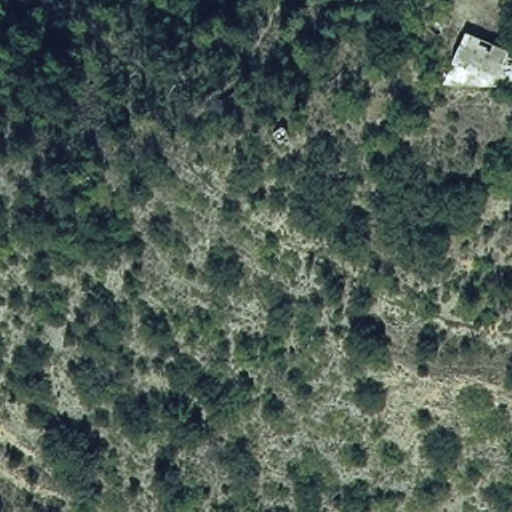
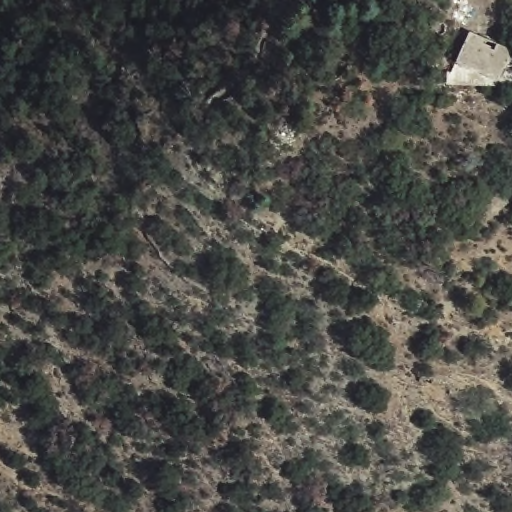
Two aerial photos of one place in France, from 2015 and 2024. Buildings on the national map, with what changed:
unchanged [(468,29),(510,46),(495,82),(453,64),(468,29)]

